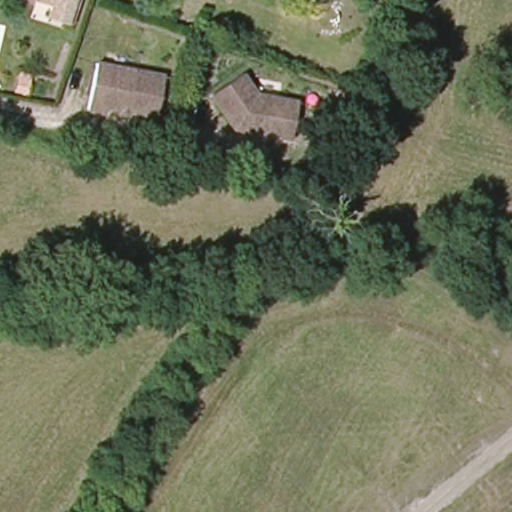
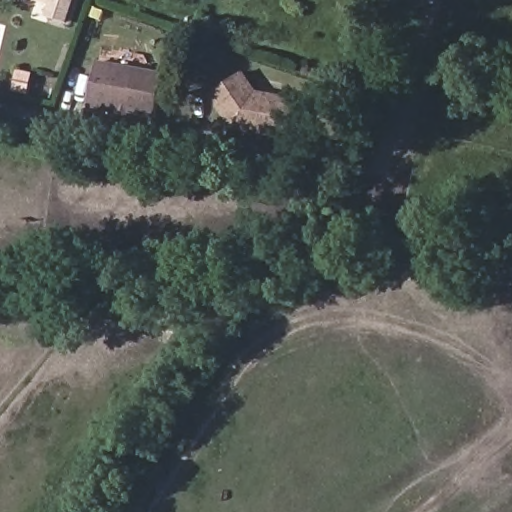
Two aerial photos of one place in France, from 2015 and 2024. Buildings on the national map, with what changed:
unchanged [(65,25),(47,19),(51,7),(36,2),(37,0),(73,0),(65,25)]
unchanged [(166,77),(158,118),(109,108),(108,114),(91,110),(100,63),(166,77)]
unchanged [(243,77),(257,96),(298,104),(291,143),(234,132),(211,98),(243,77)]

